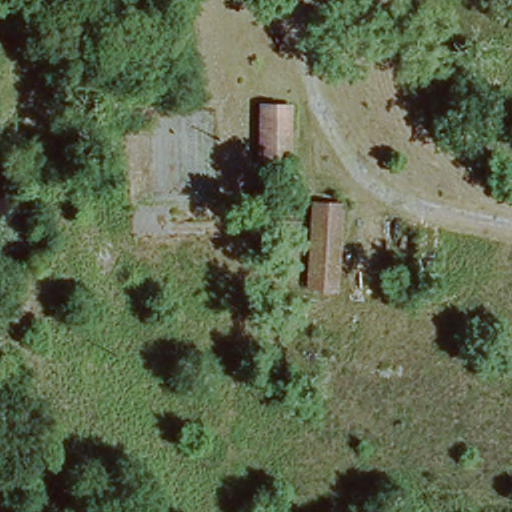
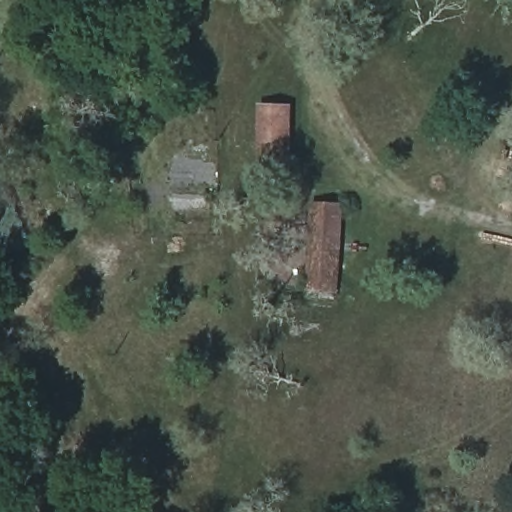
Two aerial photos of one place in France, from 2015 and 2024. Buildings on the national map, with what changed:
unchanged [(290,102),(290,168),(259,164),(260,100),(290,102)]
unchanged [(302,287),(313,200),(342,203),(330,290),(302,287)]

